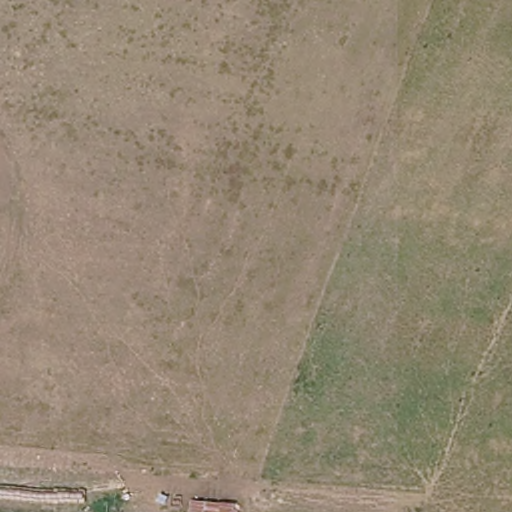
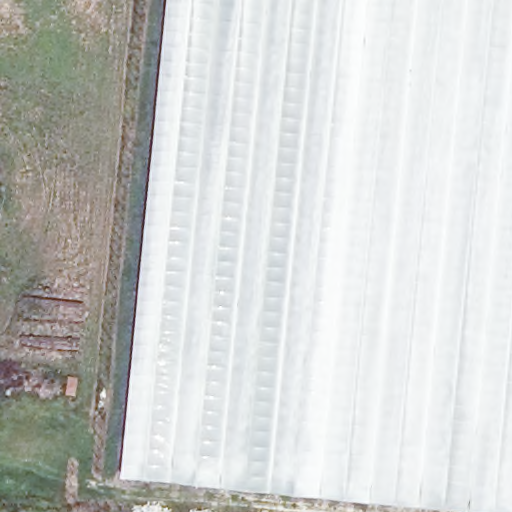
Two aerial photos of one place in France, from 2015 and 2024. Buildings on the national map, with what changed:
new [(170,0),(512,0),(512,512),(471,512),(122,478),(170,0)]

